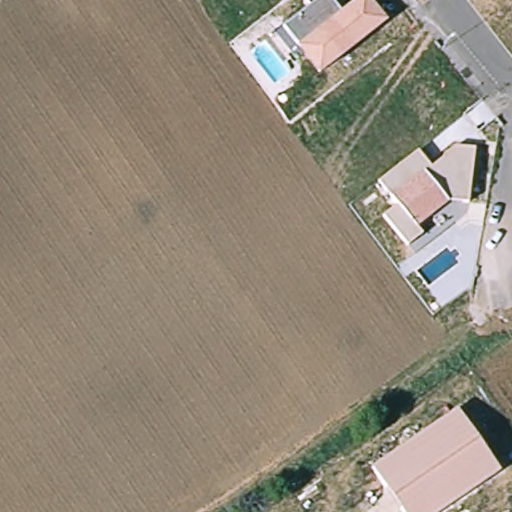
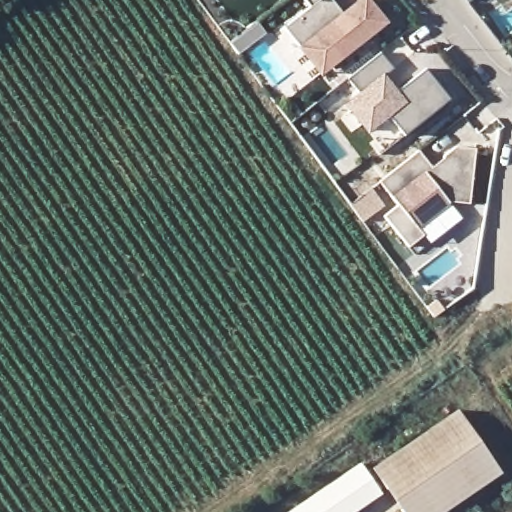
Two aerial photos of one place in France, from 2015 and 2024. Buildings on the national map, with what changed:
unchanged [(319,75),(285,26),(310,6),(306,0),(332,0),(342,11),(355,0),(370,0),(388,22),(319,75)]
new [(360,91),(348,75),(382,49),(394,66),(384,74),(396,89),(426,66),(450,97),(383,149),(346,101),(360,91)]
unchanged [(468,203),(449,201),(418,227),(424,234),(408,247),(384,215),(398,205),(379,180),(419,150),(432,167),(455,146),(476,147),(468,203)]
unchanged [(451,409),(494,471),(434,512),(400,512),(369,466),(451,409)]
new [(360,462),(381,492),(352,512),(288,512),(360,462)]

